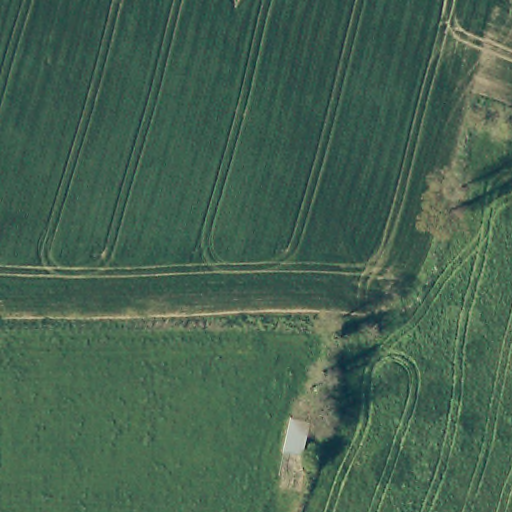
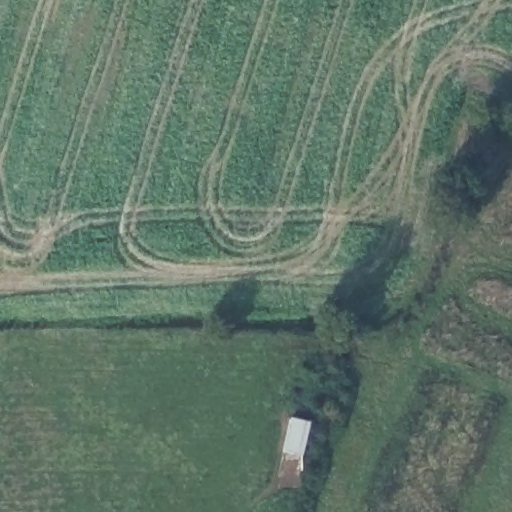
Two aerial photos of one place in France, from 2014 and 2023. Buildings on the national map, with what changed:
unchanged [(291,410),(317,414),(312,454),(281,448),(291,410)]

